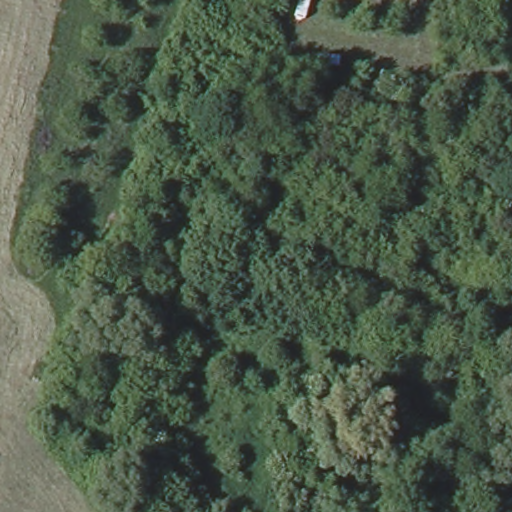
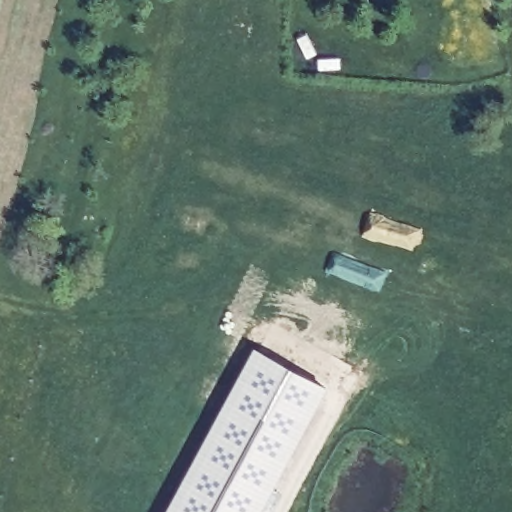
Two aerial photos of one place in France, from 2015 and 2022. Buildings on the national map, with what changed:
new [(166,512),(255,347),(329,387),(263,512),(166,512)]

